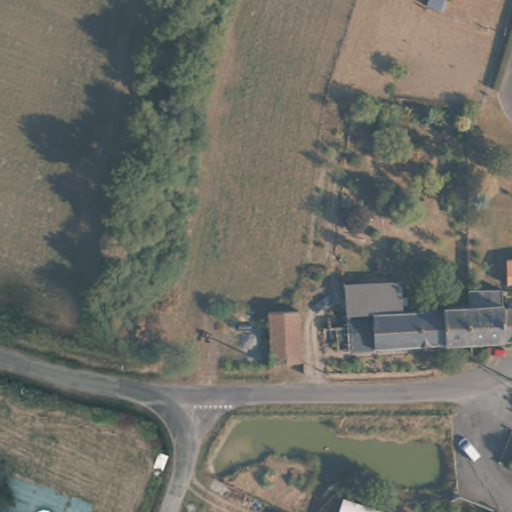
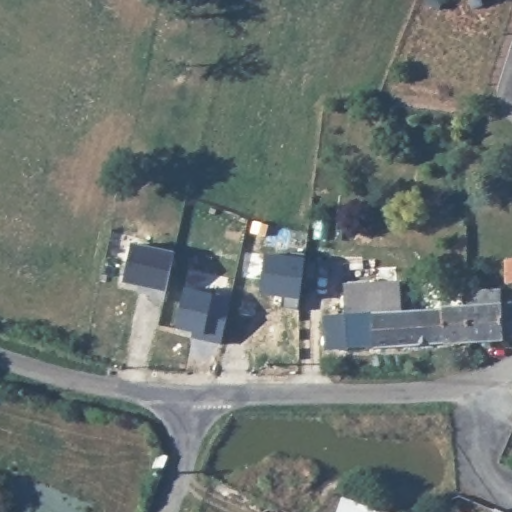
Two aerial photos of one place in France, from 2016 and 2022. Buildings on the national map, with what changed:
new [(122,284),(131,243),(174,252),(166,293),(122,284)]
new [(279,308),(281,297),(258,294),(264,254),(286,257),(287,251),(304,253),(296,310),(279,308)]
unchanged [(503,254),(512,253),(512,282),(507,282),(503,254)]
unchanged [(467,288),(467,287),(502,286),(504,300),(512,303),(512,341),(475,344),(469,307),(467,288)]
unchanged [(326,361),(323,336),(332,335),(331,330),(347,327),(345,293),(397,287),(402,315),(469,307),(475,344),(326,361)]
new [(194,340),(195,334),(176,329),(185,289),(213,295),(230,299),(220,345),(194,340)]
unchanged [(396,512),(339,512),(345,494),(396,512)]
unchanged [(502,512),(496,512),(497,509),(502,512)]

